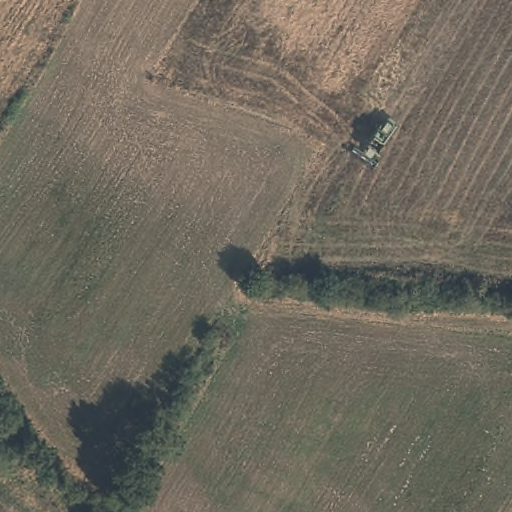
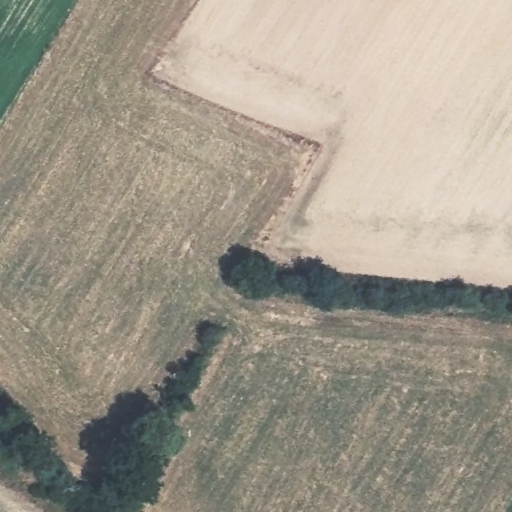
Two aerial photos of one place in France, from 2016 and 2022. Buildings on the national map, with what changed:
[]

